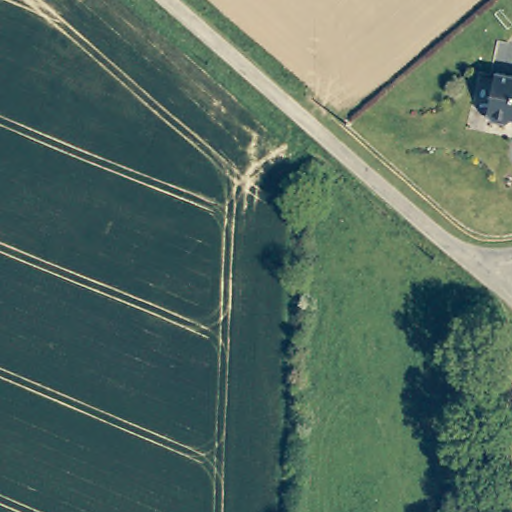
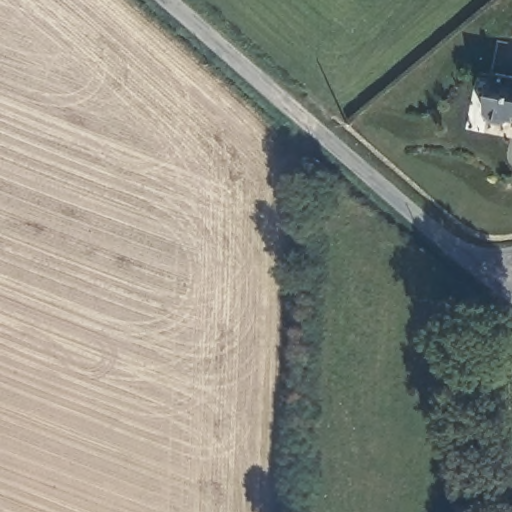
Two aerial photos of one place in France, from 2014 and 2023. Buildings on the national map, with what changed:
unchanged [(512,70),(512,115),(508,117),(494,114),(490,108),(500,67),(512,70)]

